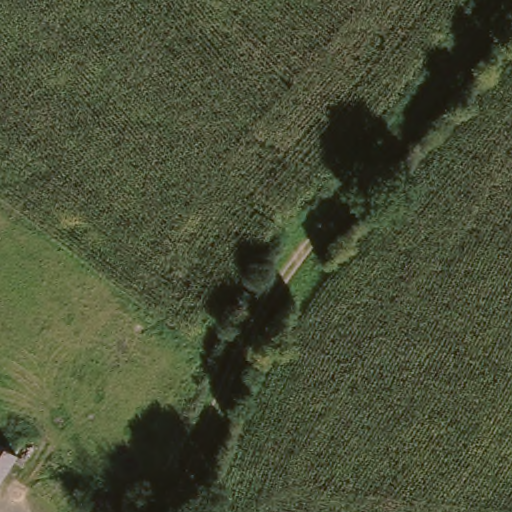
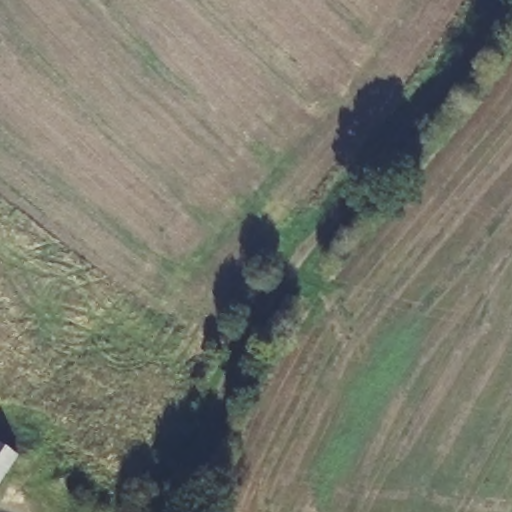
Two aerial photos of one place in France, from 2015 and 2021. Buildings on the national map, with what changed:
unchanged [(14,453),(0,475),(0,445),(14,453)]

